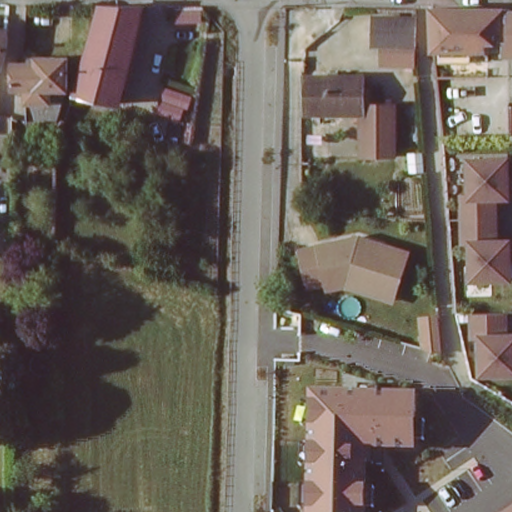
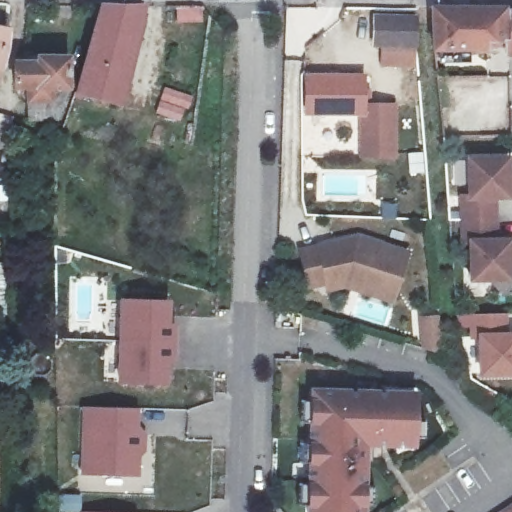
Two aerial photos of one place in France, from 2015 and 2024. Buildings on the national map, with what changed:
unchanged [(141,6),(117,105),(77,95),(101,6),(141,6)]
unchanged [(512,50),(507,49),(501,49),(477,56),(435,52),(431,6),(512,9),(512,50)]
unchanged [(372,45),(372,17),(416,16),(415,44),(372,45)]
unchanged [(6,33),(5,58),(0,72),(0,32),(6,33)]
unchanged [(512,64),(509,64),(507,49),(512,50),(512,64)]
unchanged [(30,96),(13,97),(10,63),(30,59),(32,56),(66,56),(67,95),(30,96)]
demolished [(435,75),(451,74),(456,124),(442,126),(435,75)]
unchanged [(395,109),(395,119),(395,158),(365,158),(365,118),(308,117),(308,80),(366,80),(366,108),(395,109)]
unchanged [(67,95),(67,128),(30,130),(30,96),(67,95)]
demolished [(1,135),(0,136),(0,104),(1,135)]
unchanged [(512,205),(500,206),(502,245),(512,245),(512,287),(470,287),(470,248),(459,245),(458,204),(470,202),(465,166),(511,164),(512,169),(512,205)]
unchanged [(401,307),(349,294),(331,299),(329,292),(310,299),(301,259),(363,240),(417,258),(401,307)]
new [(182,296),(180,379),(124,379),(125,295),(182,296)]
unchanged [(512,385),(479,384),(480,345),(471,344),(472,320),(506,319),(508,339),(512,339),(512,385)]
unchanged [(419,447),(368,448),(369,512),(309,512),(308,388),(418,389),(419,447)]
new [(142,406),(141,474),(83,474),(85,406),(142,406)]
unchanged [(512,505),(512,512),(501,512),(512,505)]

